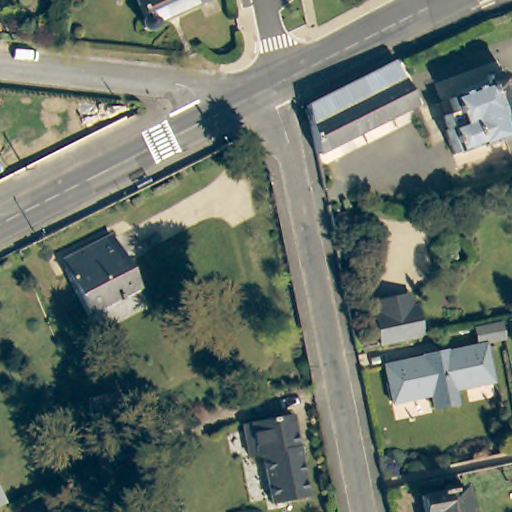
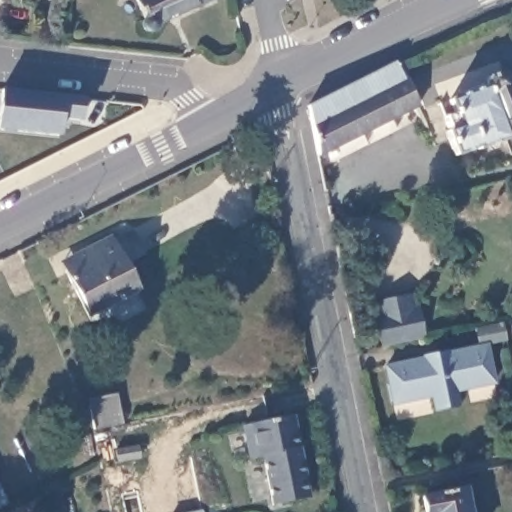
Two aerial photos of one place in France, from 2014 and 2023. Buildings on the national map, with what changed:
unchanged [(153,21),(152,24),(151,28),(148,30),(145,31),(141,31),(139,29),(136,25),(136,22),(138,17),(130,0),(201,0),(153,21)]
unchanged [(418,106),(318,157),(308,105),(396,62),(418,106)]
unchanged [(505,134),(507,139),(477,150),(476,147),(454,155),(445,132),(448,131),(443,118),(453,114),(448,100),(484,86),(487,75),(496,71),(506,77),(512,95),(512,131),(505,134)]
new [(64,118),(60,136),(0,131),(0,117),(2,89),(86,96),(84,120),(64,118)]
unchanged [(113,293),(116,299),(84,315),(64,273),(86,262),(83,253),(111,240),(132,285),(113,293)]
unchanged [(380,315),(377,303),(411,295),(414,307),(420,305),(428,337),(381,347),(373,316),(380,315)]
unchanged [(512,319),(512,337),(511,338),(507,321),(512,319)]
unchanged [(504,343),(475,349),(471,327),(499,321),(504,343)]
unchanged [(484,348),(491,385),(451,393),(454,407),(431,412),(429,398),(389,406),(382,367),(484,348)]
unchanged [(124,421),(94,427),(88,398),(118,392),(124,421)]
unchanged [(310,498),(273,505),(264,456),(251,459),(244,426),(293,416),(310,498)]
unchanged [(463,488),(468,512),(424,512),(422,496),(463,488)]

